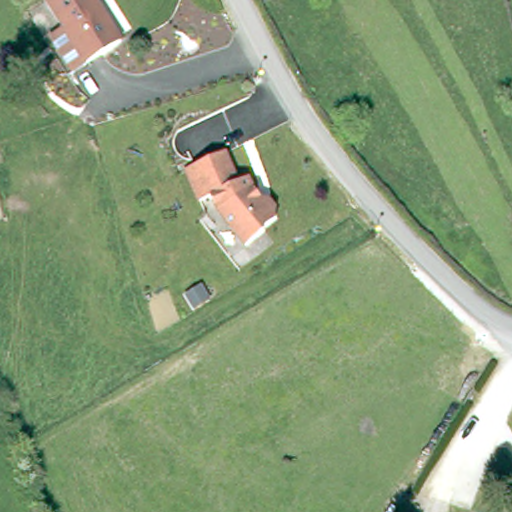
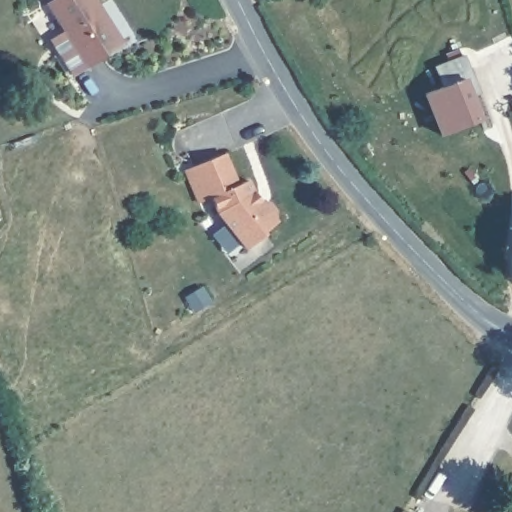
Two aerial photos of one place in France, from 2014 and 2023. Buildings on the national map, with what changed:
unchanged [(43,10),(57,0),(106,0),(131,36),(84,69),(43,10)]
new [(482,119),(440,135),(423,94),(466,77),(482,119)]
unchanged [(261,204),(268,205),(275,214),(274,220),(276,223),(262,233),(264,235),(245,249),(217,213),(211,198),(200,203),(187,171),(225,155),(238,186),(249,182),(253,193),(261,204)]

